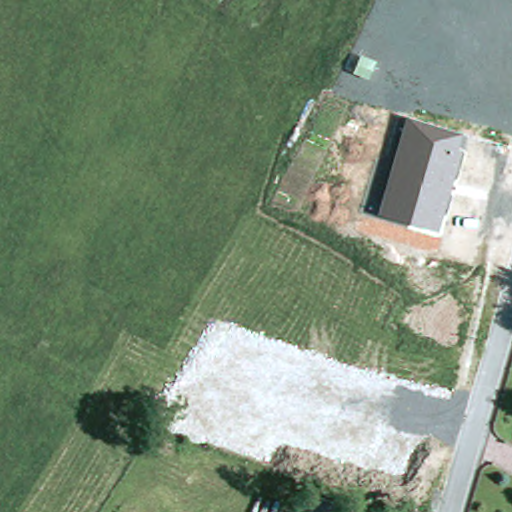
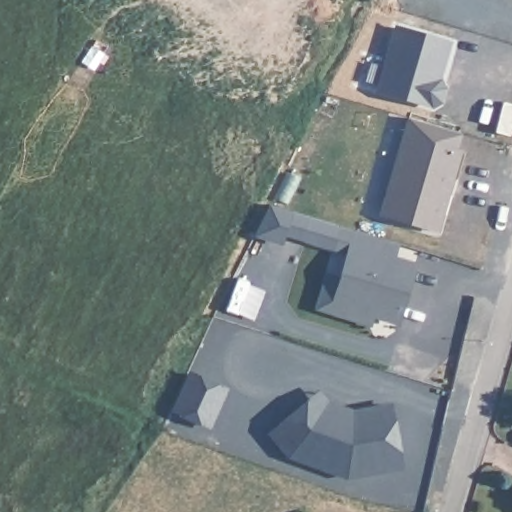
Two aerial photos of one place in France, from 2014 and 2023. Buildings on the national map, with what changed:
new [(394,25),(453,42),(443,85),(445,88),(443,104),(440,106),(434,110),(372,92),(394,25)]
unchanged [(462,135),(439,231),(378,214),(406,118),(462,135)]
new [(271,203),(293,209),(284,239),(257,232),(271,203)]
new [(418,250),(398,328),(387,340),(375,337),(371,330),(314,313),(338,227),(418,250)]
new [(169,416),(188,373),(225,388),(207,430),(169,416)]
new [(311,395),(322,403),(349,410),(389,406),(403,475),(346,481),(286,459),(264,435),(311,395)]

